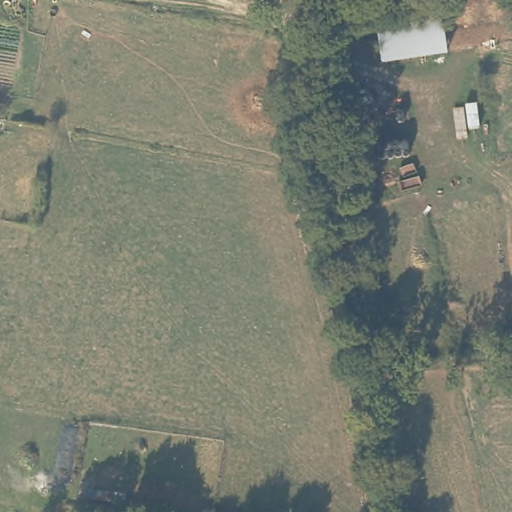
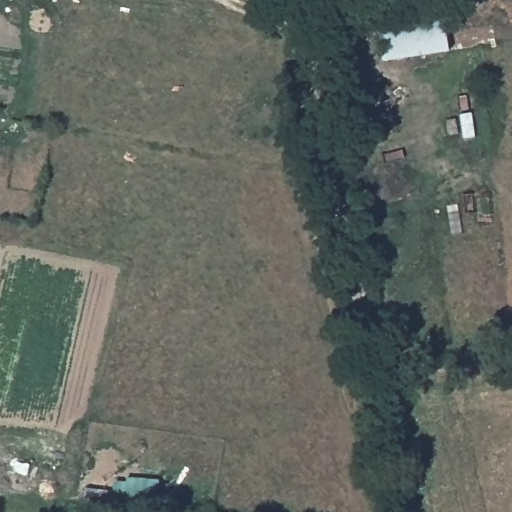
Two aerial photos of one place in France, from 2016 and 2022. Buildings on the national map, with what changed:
unchanged [(377,12),(441,4),(447,51),(383,61),(377,12)]
unchanged [(355,112),(401,110),(403,132),(355,135),(355,112)]

